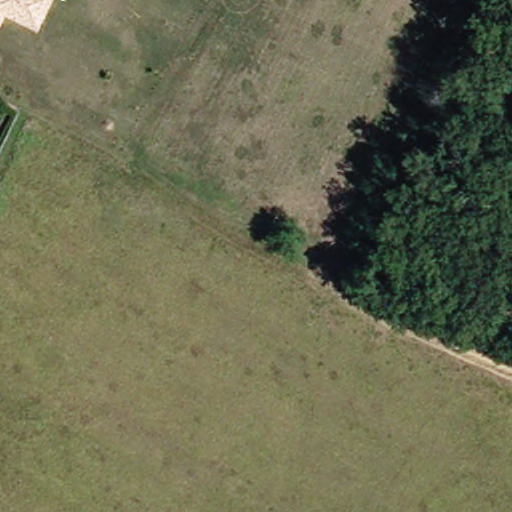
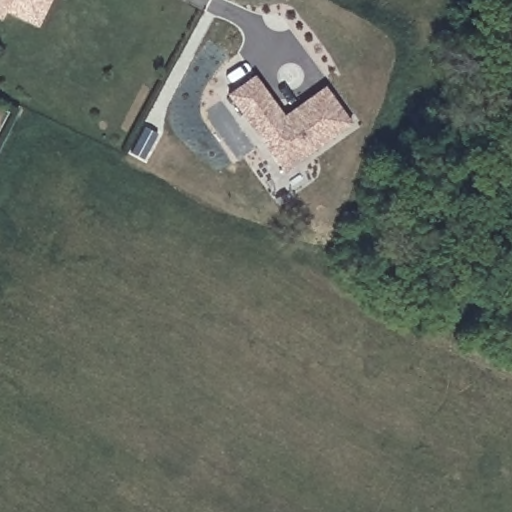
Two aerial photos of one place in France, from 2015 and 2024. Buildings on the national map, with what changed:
unchanged [(24,16),(5,8),(1,17),(0,17),(0,0),(30,0),(24,16)]
unchanged [(42,0),(52,0),(50,4),(42,0)]
new [(260,76),(289,117),(330,87),(357,122),(289,172),(233,95),(260,76)]

